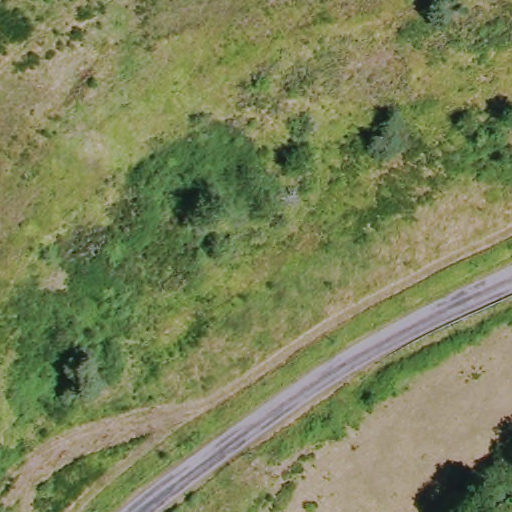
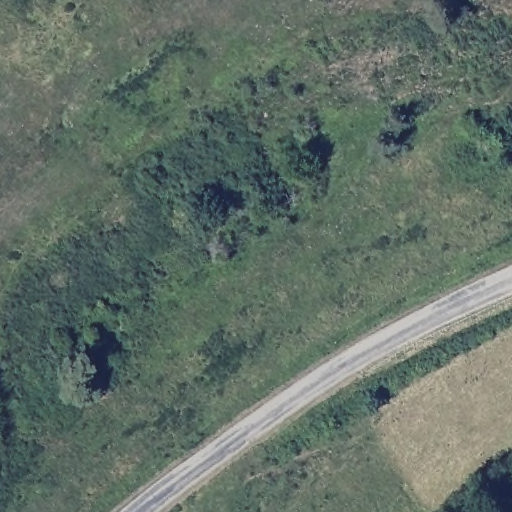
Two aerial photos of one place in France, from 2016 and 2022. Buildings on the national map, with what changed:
[]

